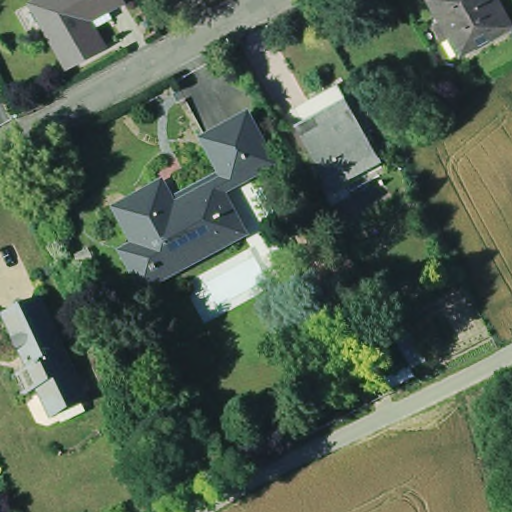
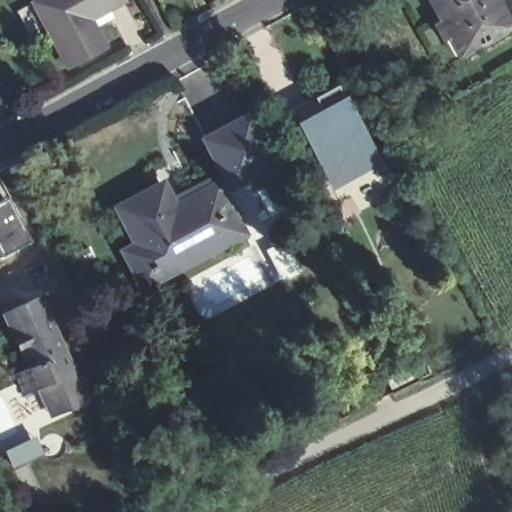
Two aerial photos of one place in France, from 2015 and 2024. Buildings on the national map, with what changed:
unchanged [(37,1),(38,0),(125,0),(112,7),(93,16),(108,45),(72,65),(37,1)]
unchanged [(423,2),(427,0),(487,0),(505,31),(455,60),(445,42),(437,46),(430,34),(427,27),(435,24),(423,2)]
unchanged [(386,172),(337,199),(307,142),(309,142),(300,125),(345,101),(354,117),(355,117),(386,172)]
unchanged [(210,144),(252,121),(277,167),(235,190),(210,144)]
unchanged [(180,211),(222,189),(247,236),(205,259),(201,251),(162,272),(162,273),(157,277),(157,275),(143,282),(130,256),(142,250),(122,213),(167,189),(180,211)]
new [(32,242),(0,259),(0,199),(7,196),(32,242)]
unchanged [(50,422),(45,411),(37,393),(22,400),(13,380),(31,372),(27,362),(23,362),(3,318),(40,302),(83,394),(88,405),(50,422)]

